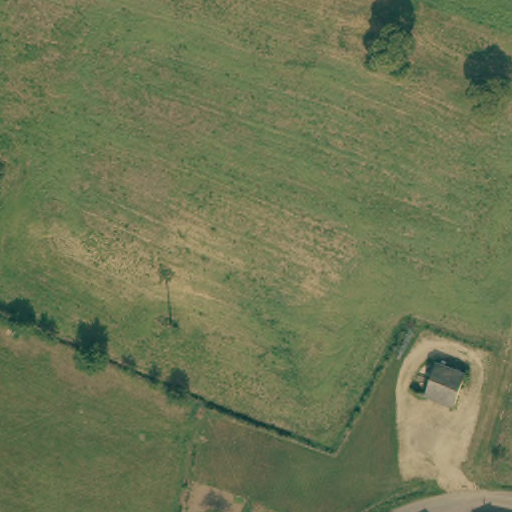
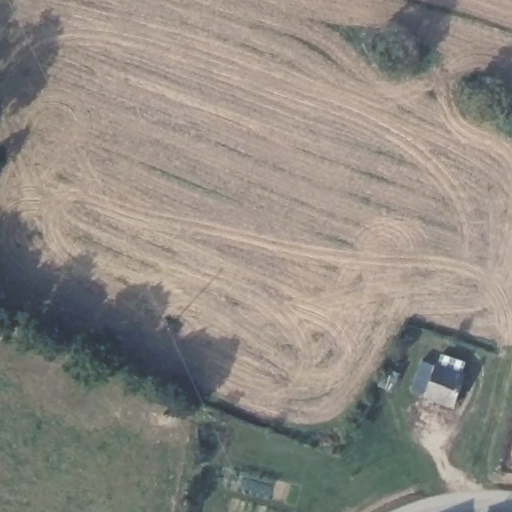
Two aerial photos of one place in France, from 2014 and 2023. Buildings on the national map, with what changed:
unchanged [(453,406),(423,394),(408,386),(420,359),(435,364),(465,378),(453,406)]

